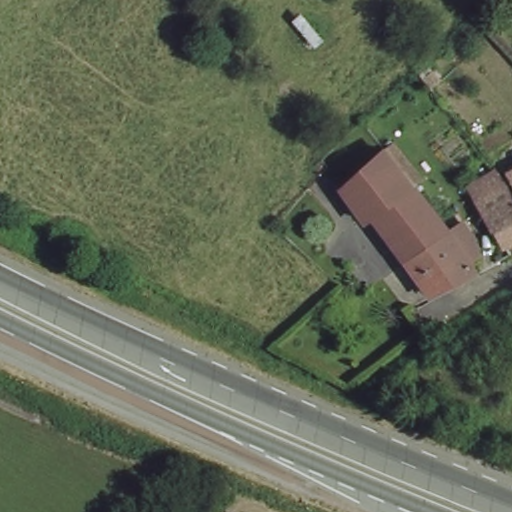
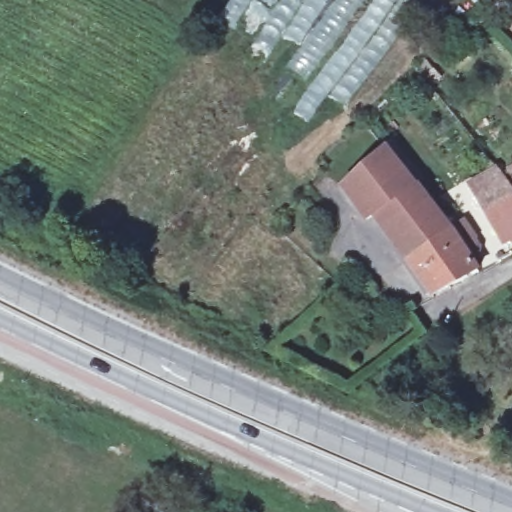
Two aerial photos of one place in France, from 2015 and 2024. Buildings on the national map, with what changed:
new [(343,108),(328,97),(297,137),(281,125),(313,84),(290,68),(302,48),(283,37),(262,70),(243,59),(251,45),(233,36),(240,24),(221,14),(228,0),(418,0),(343,108)]
unchanged [(421,242),(452,285),(430,298),(374,211),(365,217),(341,186),(338,189),(334,183),(343,174),(348,179),(384,145),(442,227),(421,242)]
unchanged [(512,157),(512,233),(504,237),(468,181),(512,157)]
unchanged [(448,224),(473,261),(469,264),(474,271),(452,285),(421,242),(442,227),(448,224)]

